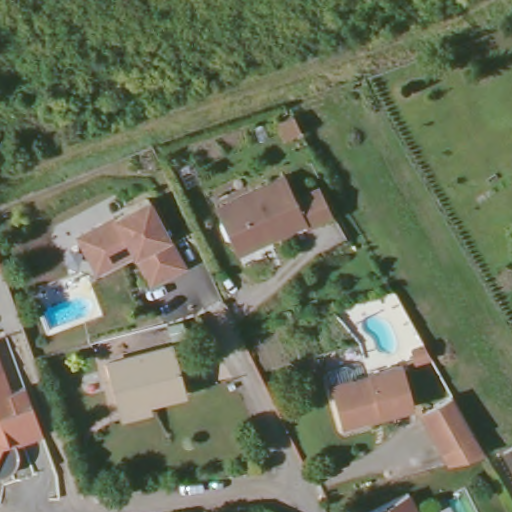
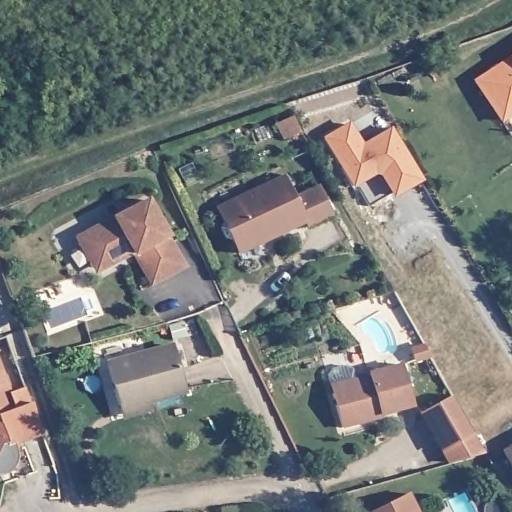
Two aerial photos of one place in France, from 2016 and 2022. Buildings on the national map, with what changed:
new [(507,127),(480,87),(512,66),(512,123),(507,127)]
new [(393,200),(390,195),(369,206),(356,185),(352,188),(323,137),(351,121),(364,144),(392,127),(423,181),(393,200)]
unchanged [(227,238),(221,238),(215,221),(220,219),(212,203),(280,173),(289,193),(312,182),(326,213),(301,226),(299,222),(233,253),(227,238)]
unchanged [(146,201),(183,269),(149,287),(130,251),(95,269),(78,237),(146,201)]
unchanged [(181,325),(185,340),(171,343),(167,329),(181,325)]
unchanged [(512,325),(512,330),(510,326),(512,325)]
unchanged [(421,339),(427,349),(416,355),(410,345),(421,339)]
unchanged [(114,420),(110,409),(100,366),(168,349),(180,395),(142,406),(144,411),(114,420)]
unchanged [(347,383),(346,379),(367,375),(366,370),(397,363),(408,405),(373,414),(374,418),(335,428),(327,389),(347,383)]
unchanged [(8,392),(24,387),(40,433),(8,445),(10,451),(10,456),(9,461),(7,464),(4,467),(0,469),(0,369),(8,392)]
unchanged [(480,455),(446,465),(418,414),(447,398),(480,455)]
unchanged [(503,453),(512,447),(512,469),(503,453)]
unchanged [(403,488),(417,512),(361,512),(360,511),(403,488)]

